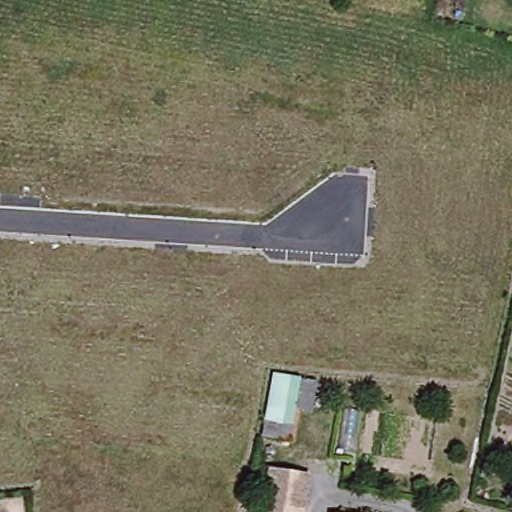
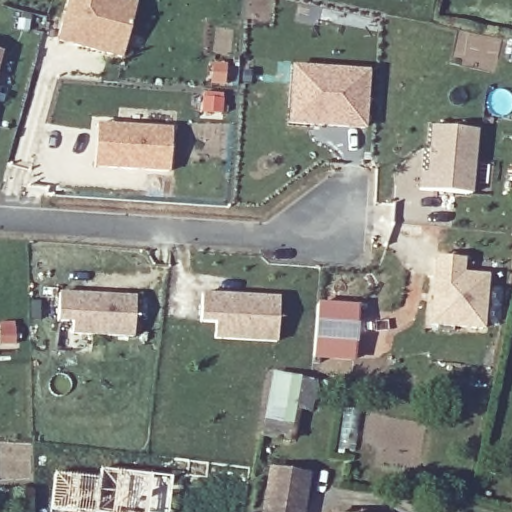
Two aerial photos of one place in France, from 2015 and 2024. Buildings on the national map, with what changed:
new [(130,21),(120,56),(58,41),(68,0),(120,0),(134,4),(130,21)]
new [(3,51),(0,63),(0,51),(3,51)]
new [(325,69),(368,72),(367,90),(364,128),(290,122),(294,66),(325,69)]
new [(96,124),(173,128),(170,173),(94,169),(96,124)]
new [(421,174),(428,175),(432,128),(477,132),(471,196),(420,191),(421,174)]
new [(430,327),(435,256),(466,259),(465,274),(489,276),(484,332),(430,327)]
new [(280,297),(278,344),(214,341),(215,326),(200,325),(202,293),(280,297)]
new [(136,297),(134,338),(71,334),(71,324),(58,323),(59,294),(136,297)]
new [(317,302),(359,305),(354,362),(313,361),(317,302)]
unchanged [(272,374),(316,384),(310,416),(299,415),(293,446),(262,438),(272,374)]
unchanged [(267,473),(305,475),(302,512),(262,512),(267,473)]

